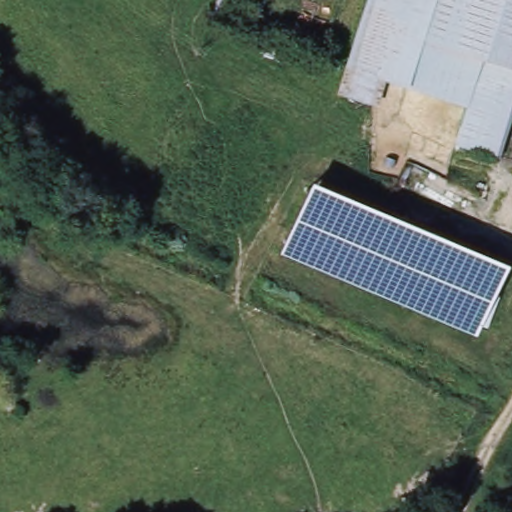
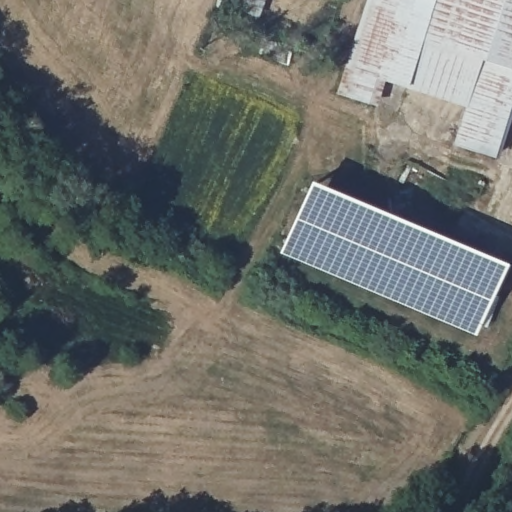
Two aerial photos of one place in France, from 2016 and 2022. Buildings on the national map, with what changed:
unchanged [(512,113),(498,156),(459,144),(471,105),(381,77),(372,102),(342,92),(351,67),(355,69),(377,0),(512,0),(512,113)]
unchanged [(506,261),(473,337),(277,257),(312,180),(506,261)]
unchanged [(18,417),(9,413),(12,404),(22,407),(18,417)]

